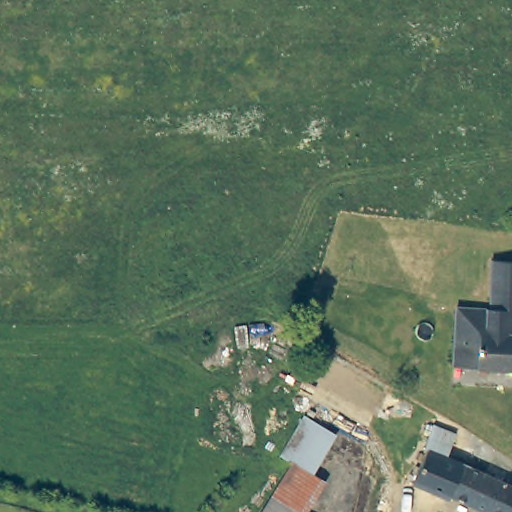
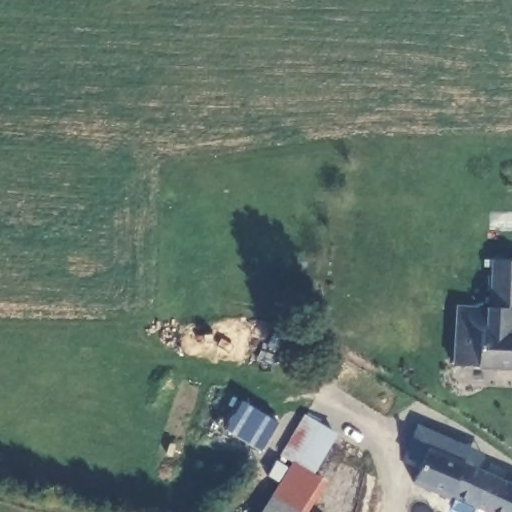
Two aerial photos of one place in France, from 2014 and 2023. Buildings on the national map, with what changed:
unchanged [(451,367),(457,310),(492,313),(494,264),(494,261),(512,262),(512,371),(451,367)]
new [(277,422),(261,451),(224,429),(241,400),(277,422)]
unchanged [(286,453),(312,416),(339,432),(312,470),(296,461),(286,453)]
unchanged [(448,495),(444,497),(438,496),(408,480),(424,444),(417,440),(426,421),(451,432),(444,453),(463,463),(484,474),(512,488),(512,512),(485,512),(470,505),(448,495)]
unchanged [(324,477),(300,512),(293,512),(270,498),(296,461),(312,470),(324,477)]
unchanged [(270,498),(293,512),(262,512),(270,498)]

